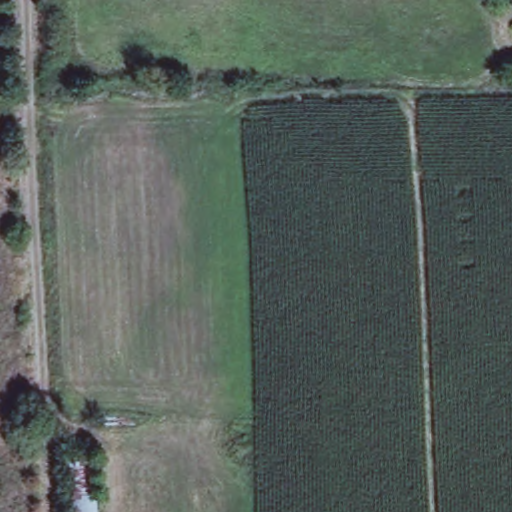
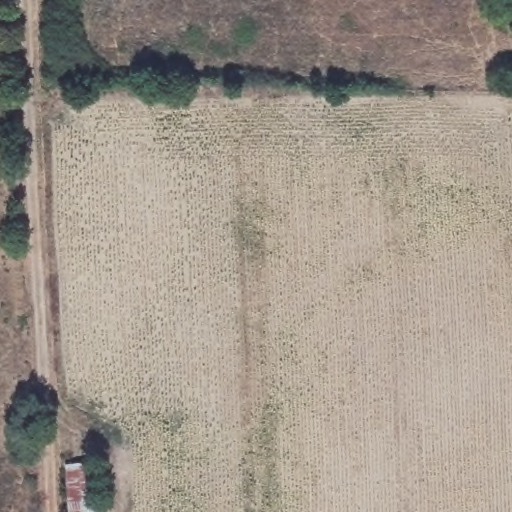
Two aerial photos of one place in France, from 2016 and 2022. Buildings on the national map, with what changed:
unchanged [(96,512),(70,512),(65,460),(90,458),(96,512)]

